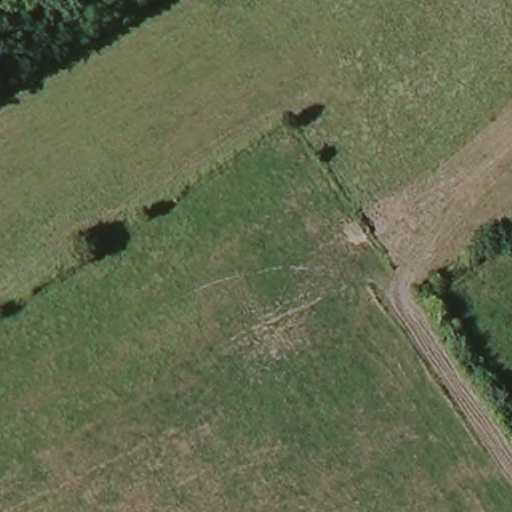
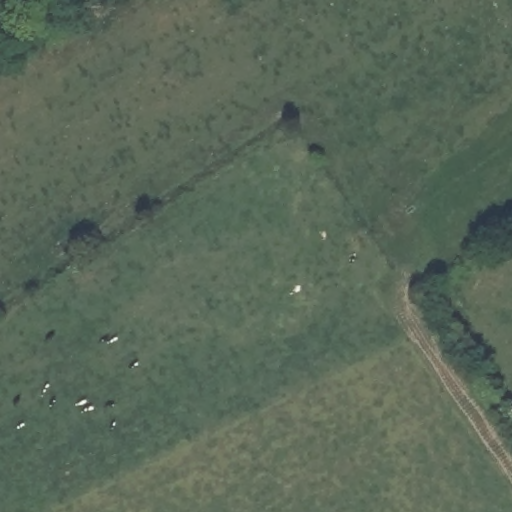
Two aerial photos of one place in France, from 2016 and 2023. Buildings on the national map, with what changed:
[]

